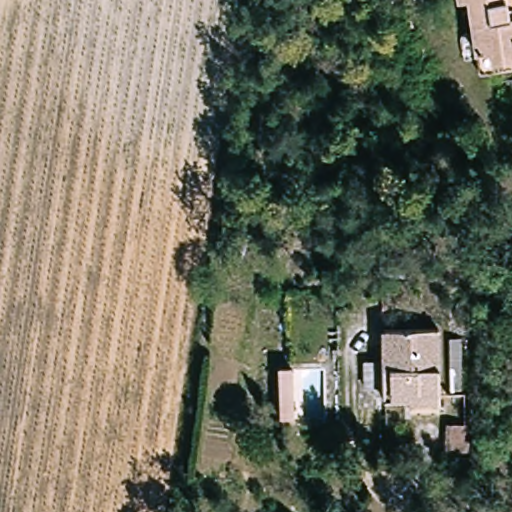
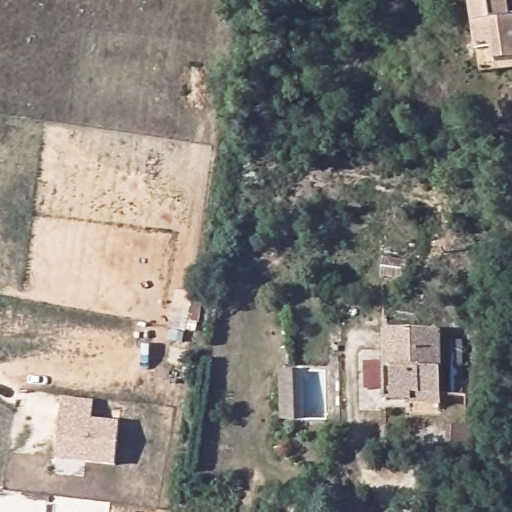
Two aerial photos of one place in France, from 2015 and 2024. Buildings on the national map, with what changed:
unchanged [(490,52),(473,51),(472,0),(508,0),(509,16),(512,16),(512,62),(492,61),(490,52)]
unchanged [(385,334),(442,337),(443,397),(414,396),(414,403),(412,403),(386,401),(385,334)]
new [(308,351),(309,401),(296,401),(295,351),(308,351)]
unchanged [(414,403),(414,396),(443,397),(443,407),(412,406),(412,402),(414,403)]
new [(92,401),(90,421),(118,424),(114,464),(56,459),(60,419),(60,398),(92,401)]
unchanged [(445,427),(468,429),(469,454),(445,453),(445,427)]

